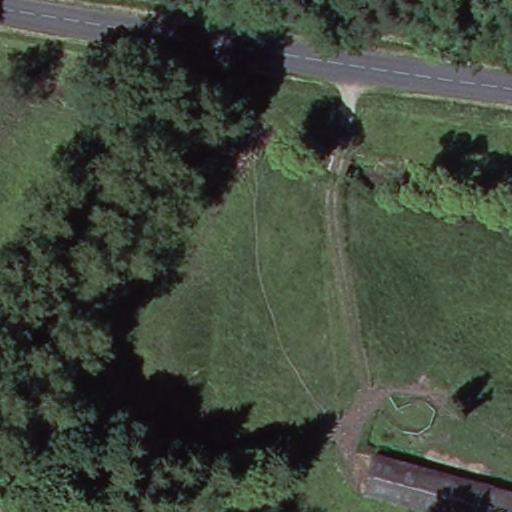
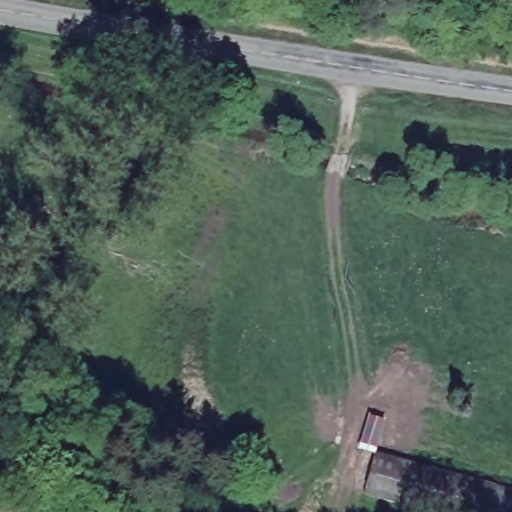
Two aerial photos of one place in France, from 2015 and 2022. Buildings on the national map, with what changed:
unchanged [(512,512),(427,512),(373,497),(381,454),(512,494),(512,512)]

